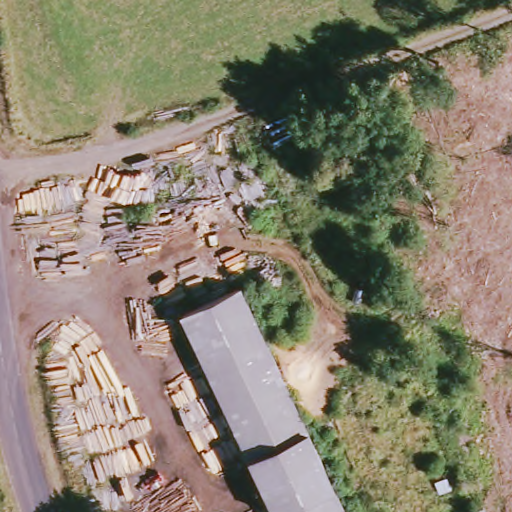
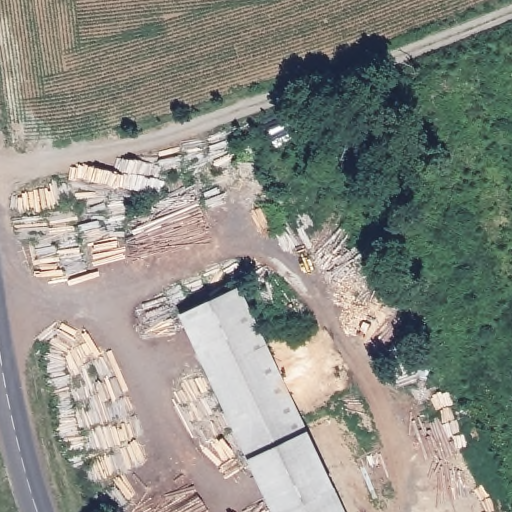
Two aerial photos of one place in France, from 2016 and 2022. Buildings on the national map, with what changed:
unchanged [(186,320),(244,296),(336,512),(266,512),(186,320)]

